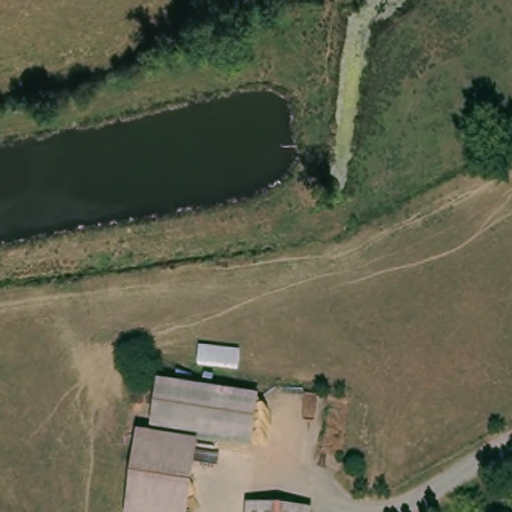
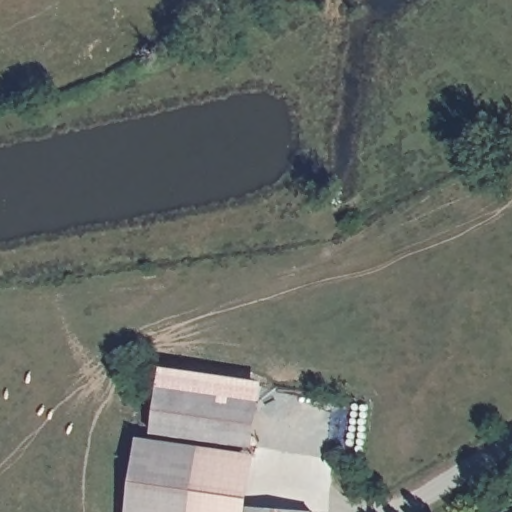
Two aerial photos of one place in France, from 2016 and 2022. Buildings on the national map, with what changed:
unchanged [(260,400),(254,449),(151,435),(159,385),(260,400)]
unchanged [(190,512),(129,512),(139,439),(199,449),(190,512)]
new [(250,507),(249,512),(190,512),(199,449),(256,457),(250,507)]
new [(249,512),(250,507),(313,512),(249,512)]

